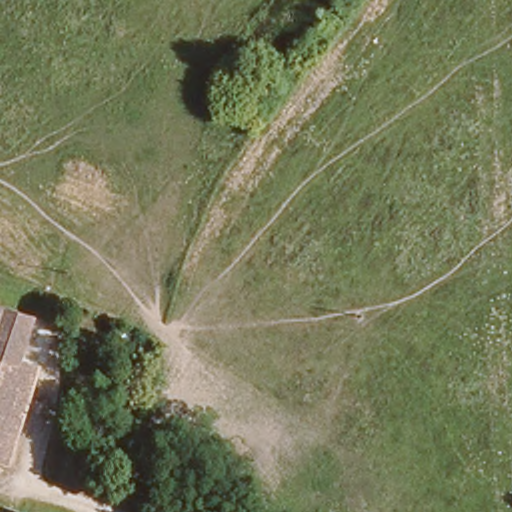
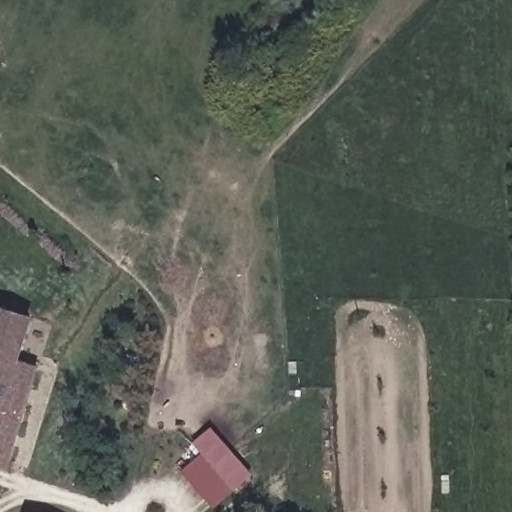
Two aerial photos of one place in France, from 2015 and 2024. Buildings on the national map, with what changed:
unchanged [(9,348),(22,353),(0,425),(0,306),(18,311),(9,348)]
new [(213,508),(181,473),(199,452),(192,442),(211,427),(253,477),(232,492),(213,508)]

